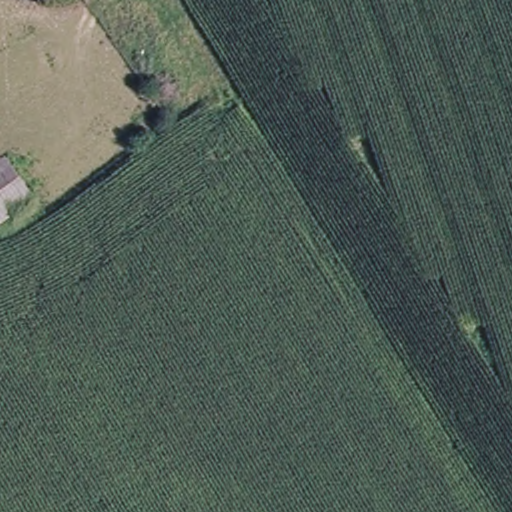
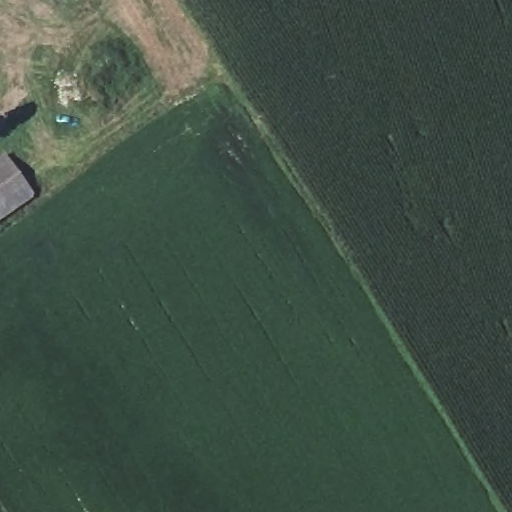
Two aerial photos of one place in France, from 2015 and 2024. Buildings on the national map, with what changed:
unchanged [(0,224),(0,166),(27,205),(0,224)]

